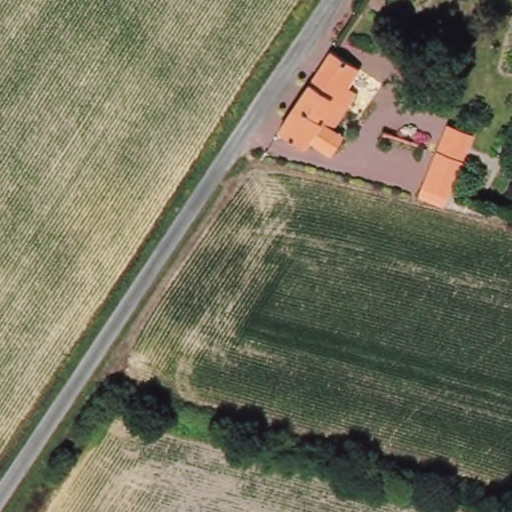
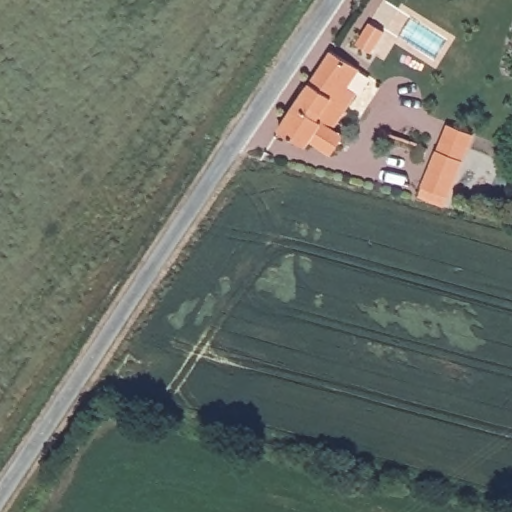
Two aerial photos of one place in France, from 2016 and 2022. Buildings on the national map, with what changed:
unchanged [(326,56),(356,76),(345,92),(352,97),(328,133),(339,140),(331,151),(328,157),(303,142),(299,149),(275,132),(326,56)]
unchanged [(418,197),(421,187),(427,172),(434,150),(450,156),(460,159),(447,194),(444,203),(418,197)]

